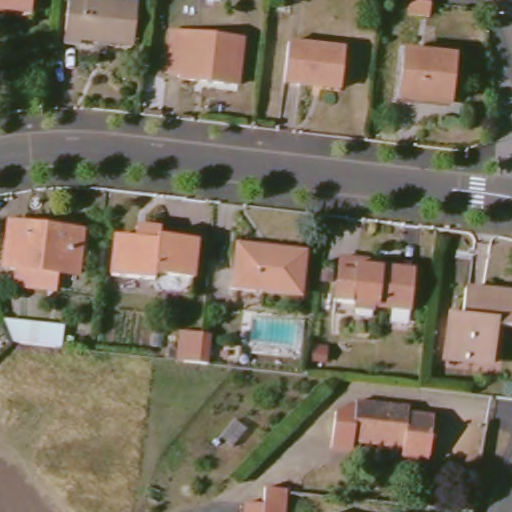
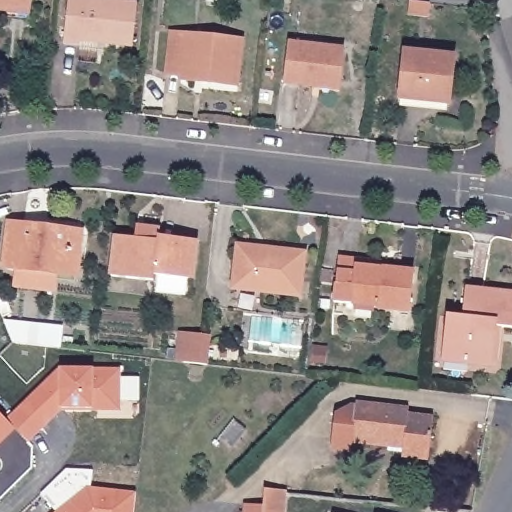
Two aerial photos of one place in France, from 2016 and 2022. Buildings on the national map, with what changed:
unchanged [(27,0),(25,23),(0,20),(0,0),(27,0)]
unchanged [(85,46),(68,44),(73,0),(134,0),(131,39),(86,36),(85,46)]
unchanged [(186,79),(187,73),(170,72),(174,36),(240,43),(237,84),(186,79)]
unchanged [(317,87),(317,91),(281,88),(285,43),(343,49),(340,89),(317,87)]
unchanged [(397,98),(402,49),(455,54),(452,102),(397,98)]
unchanged [(5,268),(8,228),(82,236),(80,275),(5,268)]
unchanged [(152,277),(152,285),(110,282),(113,239),(154,242),(155,236),(192,238),(190,280),(152,277)]
unchanged [(234,288),(235,250),(267,252),(267,246),(302,249),(300,290),(234,288)]
unchanged [(333,304),(335,277),(356,278),(357,268),(412,273),(409,310),(333,304)]
unchanged [(442,318),(455,319),(457,290),(512,294),(512,328),(498,327),(495,362),(438,358),(442,318)]
new [(7,420),(20,407),(58,369),(119,368),(120,406),(62,407),(40,429),(27,441),(19,432),(0,451),(0,413),(7,420)]
unchanged [(405,455),(406,443),(392,442),(391,448),(352,445),(351,453),(331,451),(333,416),(346,407),(354,408),(355,400),(408,405),(407,410),(432,412),(428,456),(405,455)]
unchanged [(248,498),(268,499),(270,483),(284,485),(282,512),(247,512),(248,498)]
new [(86,487),(135,492),(133,512),(57,512),(86,487)]
new [(330,509),(343,512),(329,512),(330,509)]

